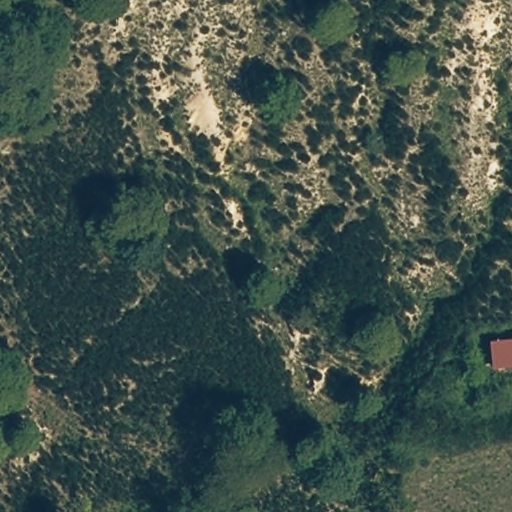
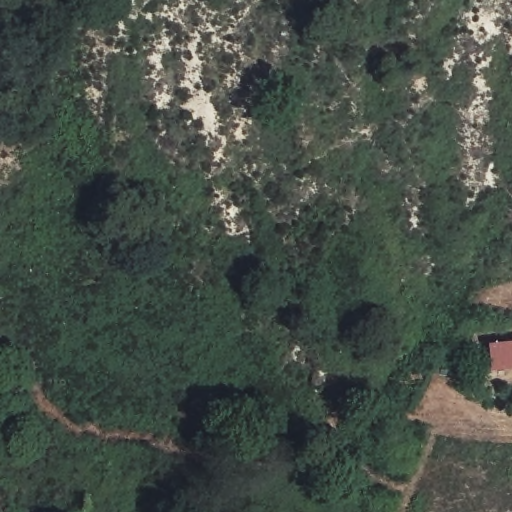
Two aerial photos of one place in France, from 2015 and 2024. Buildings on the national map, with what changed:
unchanged [(512,365),(497,366),(494,338),(512,338),(512,365)]

